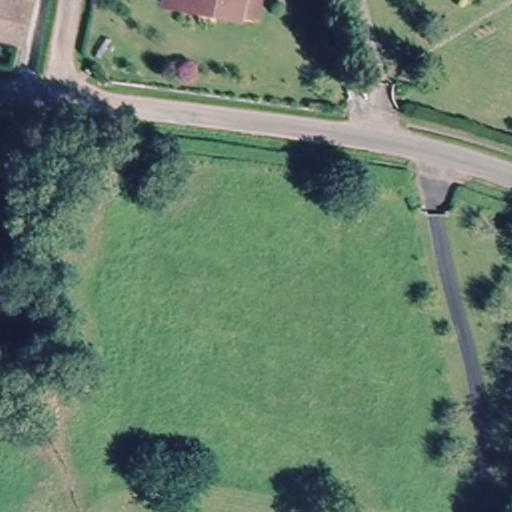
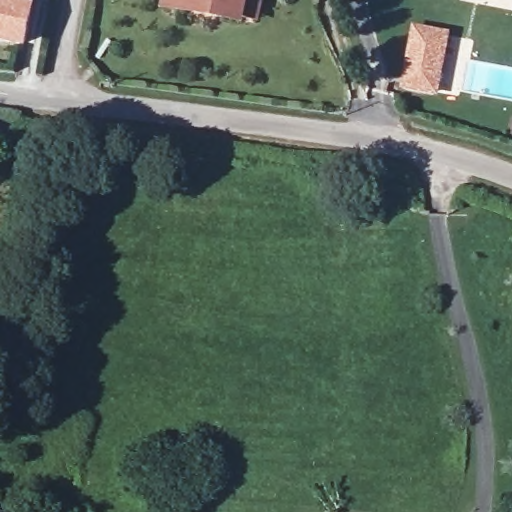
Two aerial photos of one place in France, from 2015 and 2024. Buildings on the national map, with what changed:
unchanged [(32,7),(23,47),(0,41),(0,0),(27,0),(26,6),(32,7)]
unchanged [(165,0),(259,0),(255,18),(255,24),(215,16),(184,9),(164,4),(165,0)]
new [(451,32),(440,97),(401,90),(413,26),(451,32)]

